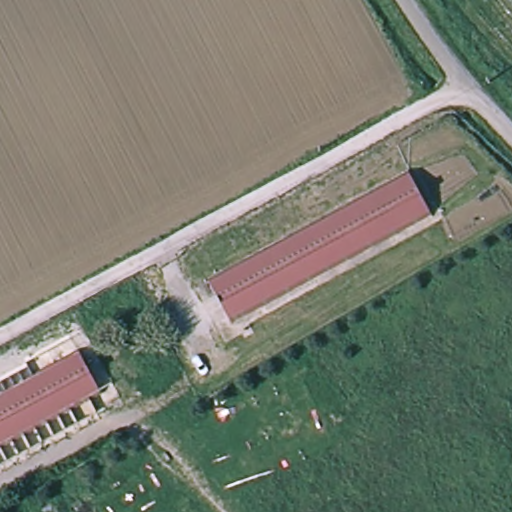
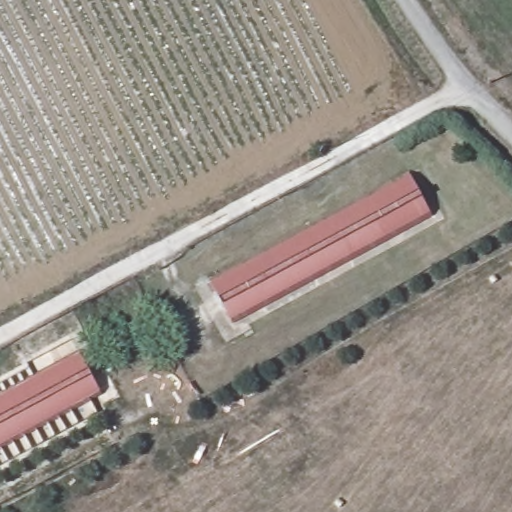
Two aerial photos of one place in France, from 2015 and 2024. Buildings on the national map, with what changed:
unchanged [(408,177),(429,219),(229,324),(207,280),(408,177)]
unchanged [(77,351),(99,394),(0,445),(0,391),(77,351)]

